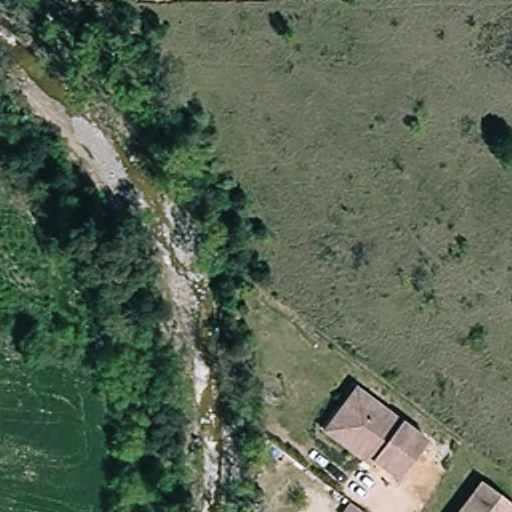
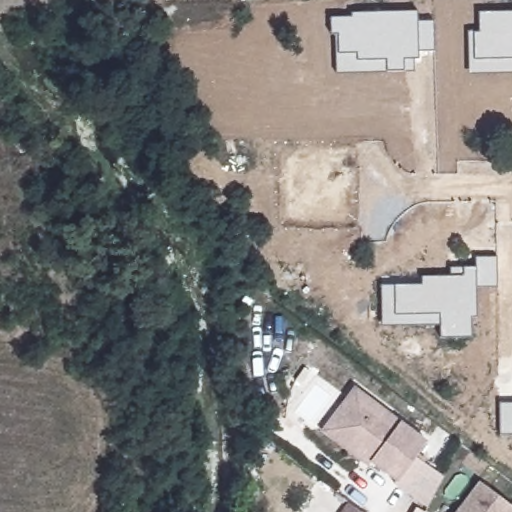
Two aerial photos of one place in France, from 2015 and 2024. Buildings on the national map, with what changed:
new [(419,49),(419,58),(414,58),(415,71),(404,70),(386,71),(335,73),(334,33),(332,33),(331,17),(352,16),(352,12),(417,11),(418,21),(434,21),(434,51),(419,49)]
new [(467,31),(475,30),(475,31),(480,31),(479,11),(512,11),(512,72),(468,73),(467,31)]
new [(440,337),(440,323),(383,325),(382,285),(395,284),(423,284),(422,276),(452,275),(450,267),(464,267),(477,267),(476,256),(497,256),(497,286),(477,286),(477,316),(470,316),(471,336),(440,337)]
unchanged [(324,435),(342,411),(355,392),(429,445),(400,484),(373,464),(370,469),(324,435)]
new [(500,403),(512,403),(512,434),(500,434),(500,403)]
new [(443,475),(428,508),(400,484),(419,459),(443,475)]
unchanged [(512,506),(512,512),(462,512),(482,484),(512,506)]
unchanged [(338,512),(347,500),(362,512),(338,512)]

